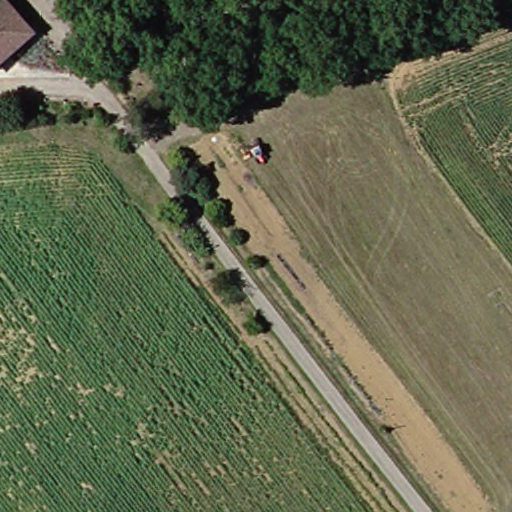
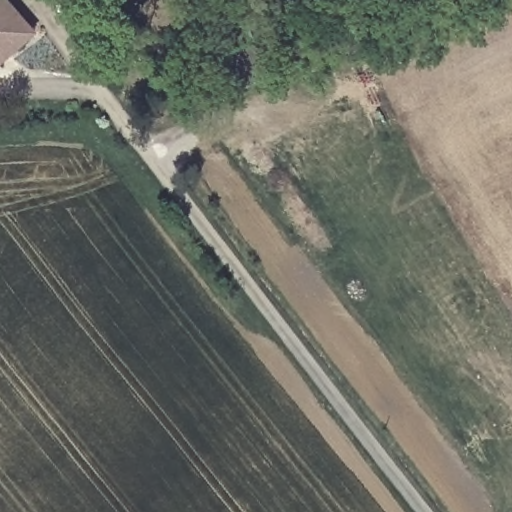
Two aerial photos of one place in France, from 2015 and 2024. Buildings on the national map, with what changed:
unchanged [(25,38),(0,59),(0,8),(25,38)]

